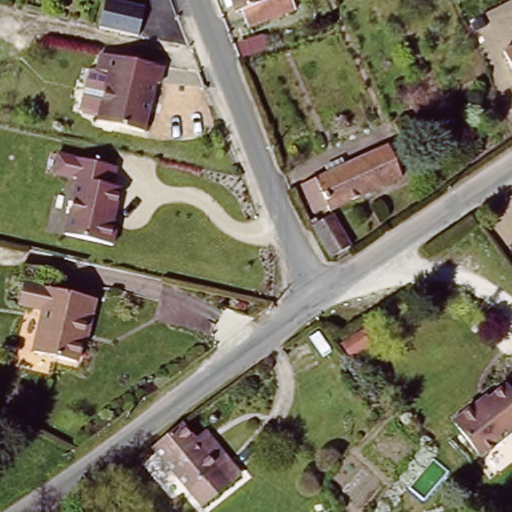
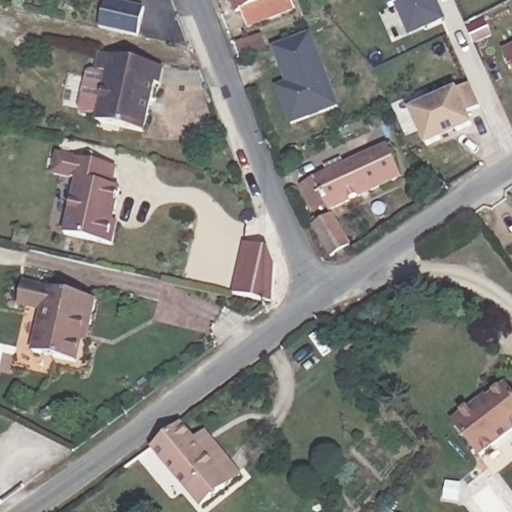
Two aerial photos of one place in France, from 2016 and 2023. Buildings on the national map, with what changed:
unchanged [(102,0),(108,0),(138,8),(130,44),(92,35),(102,0)]
unchanged [(277,2),(282,0),(297,0),(302,13),(250,33),(243,16),(237,19),(234,12),(230,14),(225,0),(276,0),(277,2)]
new [(447,21),(411,37),(400,5),(390,10),(385,0),(437,0),(447,21)]
new [(293,126),(277,87),(287,82),(272,47),(312,33),(341,107),(293,126)]
unchanged [(512,46),(512,69),(502,50),(512,46)]
unchanged [(102,73),(88,69),(93,54),(156,68),(152,85),(148,85),(137,131),(91,120),(102,73)]
new [(469,115),(474,126),(426,148),(410,110),(458,88),(459,90),(471,83),(481,107),(469,115)]
unchanged [(330,215),(329,211),(315,217),(302,186),(327,174),(325,167),(340,161),(342,167),(388,146),(402,178),(330,215)]
unchanged [(117,162),(112,183),(124,185),(112,245),(62,234),(73,178),(51,171),(57,147),(117,162)]
unchanged [(335,220),(351,252),(332,262),(316,229),(335,220)]
unchanged [(95,296),(80,362),(31,349),(40,307),(17,301),(22,279),(95,296)]
unchanged [(357,354),(352,349),(346,340),(367,322),(378,332),(372,338),(375,343),(360,357),(357,354)]
unchanged [(480,403),(482,406),(507,386),(512,392),(512,437),(482,462),(452,427),(480,403)]
unchanged [(200,508),(152,448),(182,422),(194,436),(205,428),(242,470),(200,508)]

